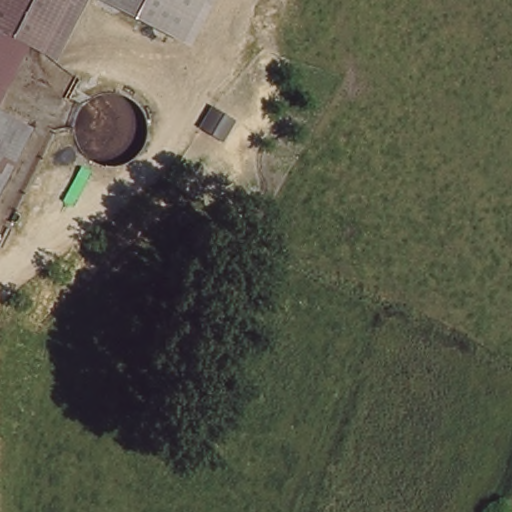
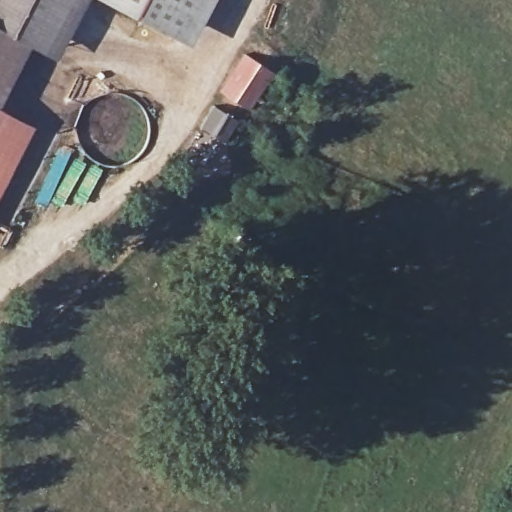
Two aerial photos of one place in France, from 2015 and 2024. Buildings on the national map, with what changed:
unchanged [(16,35),(0,26),(0,0),(69,0),(42,50),(16,35)]
unchanged [(106,0),(189,0),(170,35),(106,0)]
unchanged [(16,35),(0,65),(0,26),(16,35)]
new [(244,53),(274,72),(249,110),(219,91),(244,53)]
unchanged [(22,126),(0,168),(0,111),(22,126)]

